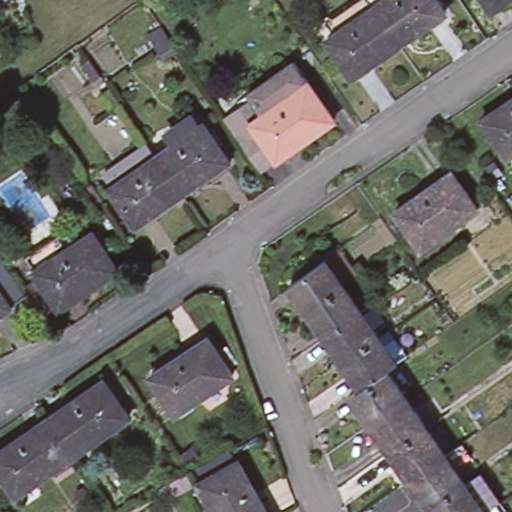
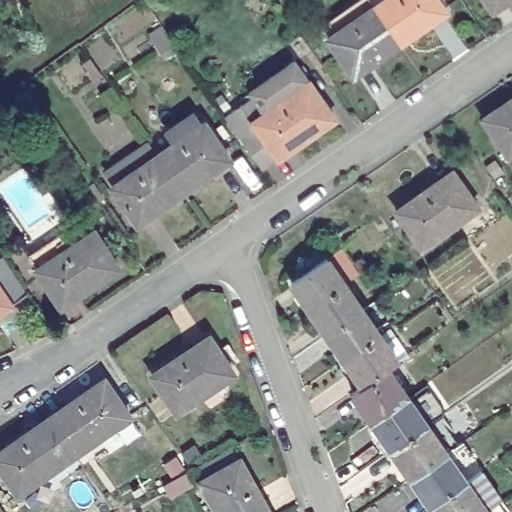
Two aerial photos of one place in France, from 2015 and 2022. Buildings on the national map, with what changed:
unchanged [(333,36),(324,23),(359,0),(431,0),(442,15),(396,47),(351,79),(325,41),(333,36)]
unchanged [(494,15),(484,0),(512,0),(512,3),(494,15)]
unchanged [(173,43),(180,54),(165,59),(160,52),(173,43)]
unchanged [(245,101),(241,96),(289,64),(306,90),(259,121),(245,101)]
unchanged [(103,96),(111,90),(120,103),(111,109),(103,96)]
unchanged [(249,128),(259,121),(306,90),(331,127),(275,165),(249,128)]
unchanged [(218,120),(245,101),(259,121),(249,128),(275,165),(258,177),(218,120)]
unchanged [(484,121),(512,102),(512,157),(510,158),(484,121)]
unchanged [(113,192),(104,180),(146,151),(153,163),(171,151),(163,139),(188,120),(198,132),(199,130),(226,168),(179,200),(136,230),(110,194),(113,192)]
unchanged [(398,213),(454,173),(479,209),(423,249),(398,213)]
unchanged [(115,276),(58,316),(32,278),(34,277),(24,264),(63,237),(73,251),(90,239),(115,276)]
unchanged [(291,279),(327,254),(346,281),(310,306),(291,279)]
unchanged [(0,311),(0,274),(17,298),(0,311)]
unchanged [(310,306),(346,281),(363,306),(328,330),(310,306)]
unchanged [(328,330),(363,306),(381,331),(344,355),(328,330)]
unchanged [(344,355),(381,331),(399,357),(387,365),(363,382),(344,355)]
unchanged [(149,378),(206,339),(229,376),(174,414),(149,378)]
unchanged [(351,390),(363,382),(387,365),(407,394),(372,419),(351,390)]
unchanged [(46,421),(103,382),(127,419),(71,458),(46,421)]
unchanged [(372,419),(407,394),(427,423),(392,447),(372,419)]
unchanged [(0,453),(46,421),(71,458),(14,497),(0,476),(0,453)]
unchanged [(392,447),(427,423),(446,450),(411,475),(392,447)]
unchanged [(411,475),(446,450),(466,480),(432,504),(411,475)]
unchanged [(236,462),(264,512),(212,512),(197,485),(236,462)]
unchanged [(466,480),(486,508),(496,501),(503,512),(437,512),(432,504),(466,480)]

